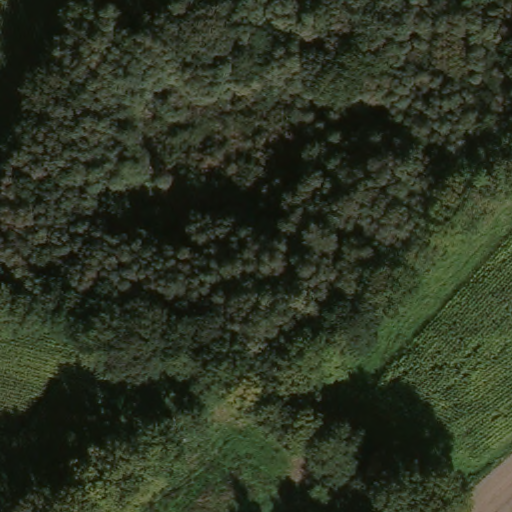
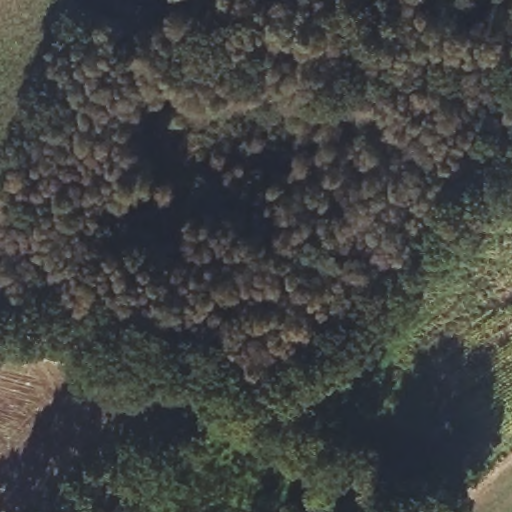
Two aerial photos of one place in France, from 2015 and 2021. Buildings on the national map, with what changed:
[]

